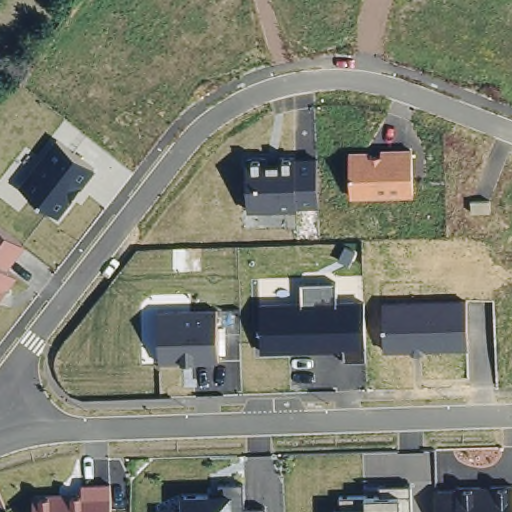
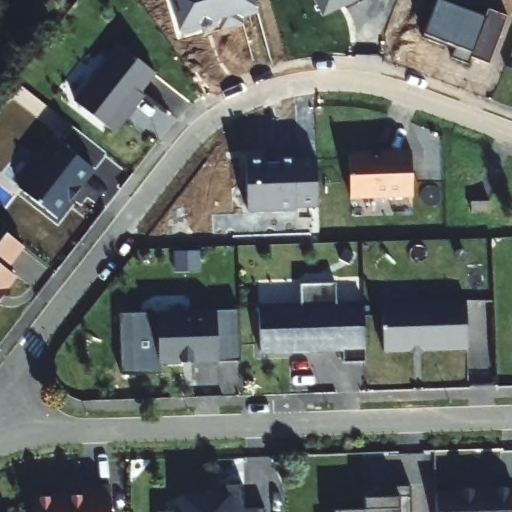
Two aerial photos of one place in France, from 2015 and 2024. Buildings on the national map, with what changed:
new [(258,12),(242,17),(243,24),(202,36),(201,27),(180,32),(170,0),(254,0),(258,12)]
new [(323,16),(315,0),(356,0),(323,16)]
new [(484,16),(486,9),(507,16),(489,64),(471,57),(469,62),(452,56),(454,50),(424,37),(425,35),(438,0),(484,16)]
new [(156,73),(141,94),(143,95),(116,131),(75,101),(118,43),(156,73)]
unchanged [(56,215),(17,185),(55,140),(91,170),(56,215)]
unchanged [(408,196),(349,196),(345,150),(408,150),(408,196)]
unchanged [(244,208),(243,157),(311,155),(314,205),(244,208)]
unchanged [(0,297),(0,232),(19,249),(6,269),(15,276),(0,297)]
unchanged [(362,358),(346,358),(344,349),(259,350),(259,301),(296,300),(299,282),(332,282),(332,302),(359,302),(362,358)]
unchanged [(380,348),(379,300),(464,300),(464,348),(380,348)]
new [(213,312),(238,311),(239,360),(216,360),(213,312)]
unchanged [(156,360),(153,314),(213,312),(216,360),(156,360)]
new [(155,350),(156,360),(159,360),(159,374),(121,375),(119,313),(153,314),(155,350)]
unchanged [(79,496),(81,483),(109,486),(108,512),(30,512),(30,496),(79,496)]
unchanged [(394,496),(389,483),(407,485),(407,512),(333,512),(333,509),(361,508),(364,495),(394,496)]
unchanged [(434,512),(432,489),(509,487),(510,512),(434,512)]
unchanged [(155,512),(156,510),(180,511),(179,491),(230,492),(241,490),(242,509),(263,511),(263,512),(155,512)]
unchanged [(3,512),(0,512),(0,510),(1,509),(3,512)]

